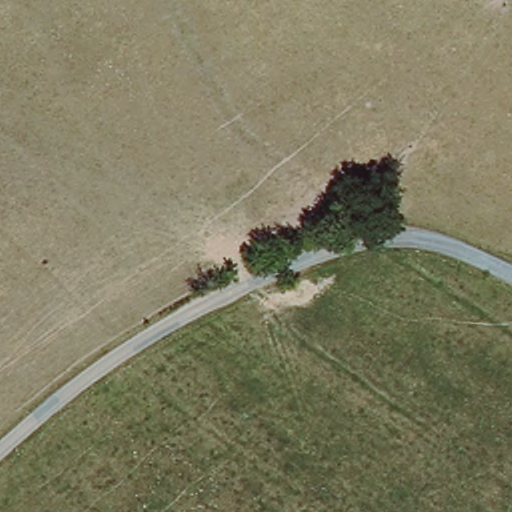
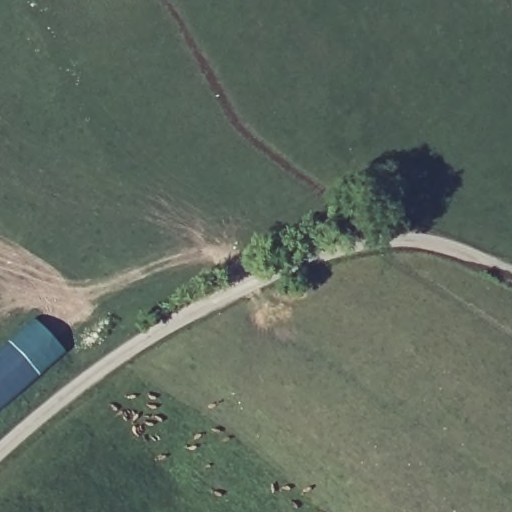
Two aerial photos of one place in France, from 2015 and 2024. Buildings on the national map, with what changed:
new [(35,316),(67,352),(0,411),(0,347),(35,316)]

